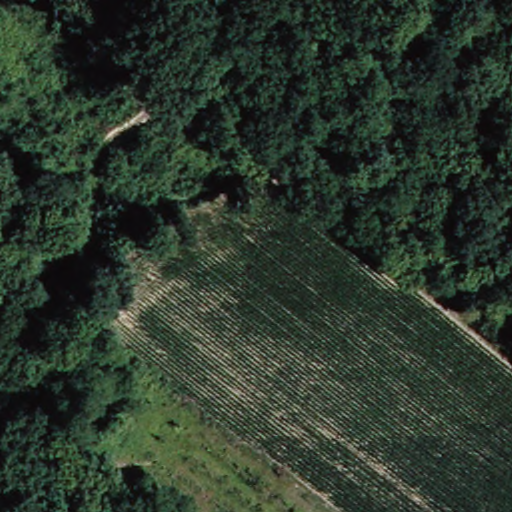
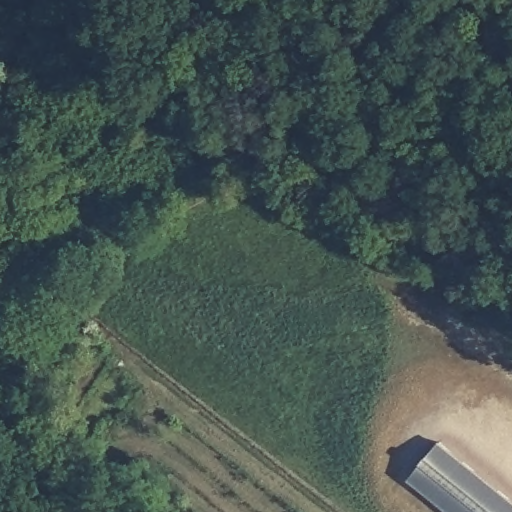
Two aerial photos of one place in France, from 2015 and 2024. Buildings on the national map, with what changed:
new [(409,479),(441,442),(512,500),(512,512),(450,512),(409,479)]

